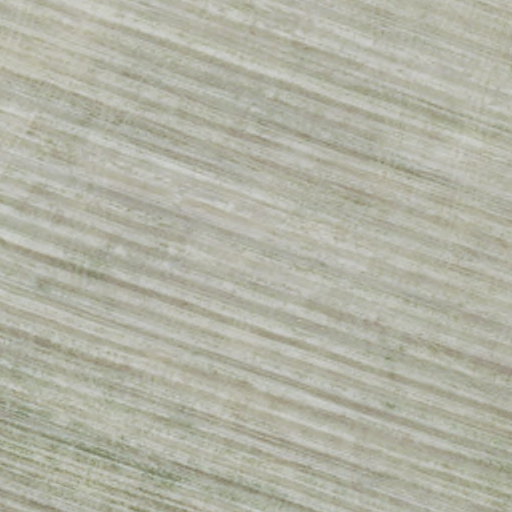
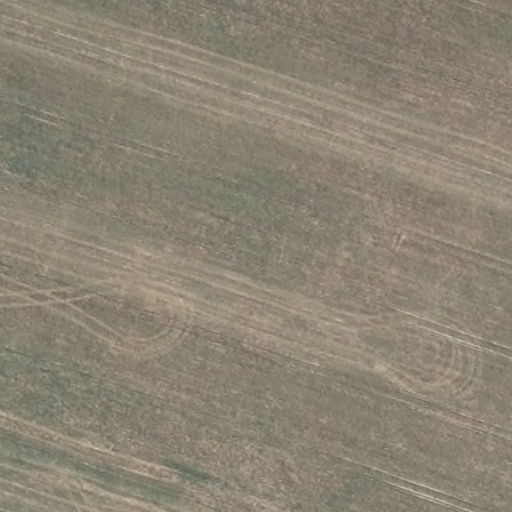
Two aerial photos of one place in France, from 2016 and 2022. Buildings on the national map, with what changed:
[]

